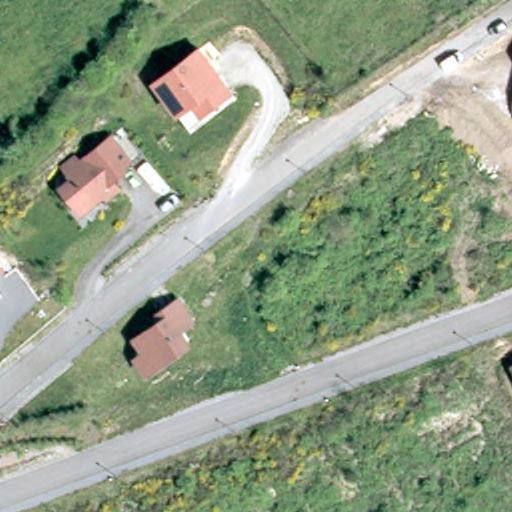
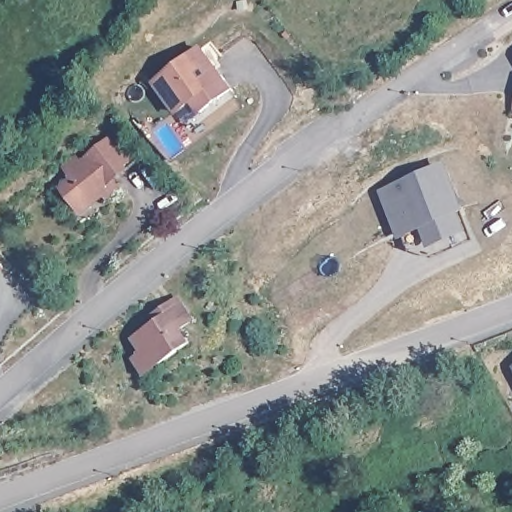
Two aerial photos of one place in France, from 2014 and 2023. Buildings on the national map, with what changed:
unchanged [(192,134),(186,129),(154,86),(198,53),(231,95),(235,101),(192,134)]
unchanged [(115,176),(113,174),(109,179),(118,190),(106,200),(103,197),(92,207),(88,203),(82,205),(74,204),(67,201),(60,192),(72,183),(62,171),(75,161),(78,166),(122,131),(141,155),(115,176)]
new [(445,161),(468,212),(462,214),(475,239),(435,258),(408,249),(403,238),(399,239),(377,189),(445,161)]
unchanged [(1,269),(0,270),(0,268),(1,269)]
unchanged [(157,320),(153,313),(180,296),(197,322),(185,328),(192,340),(145,375),(132,360),(140,354),(132,338),(157,320)]
unchanged [(512,365),(512,370),(510,366),(512,365)]

